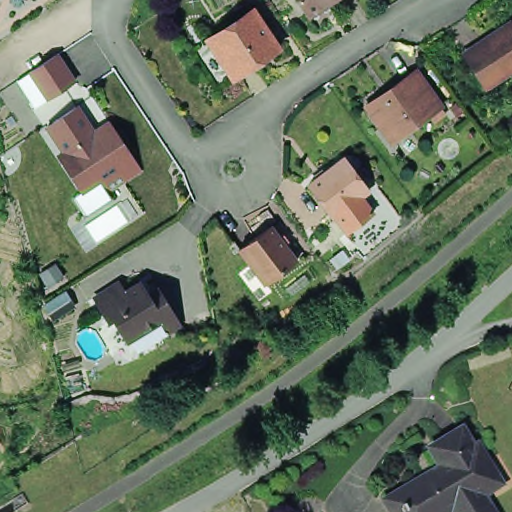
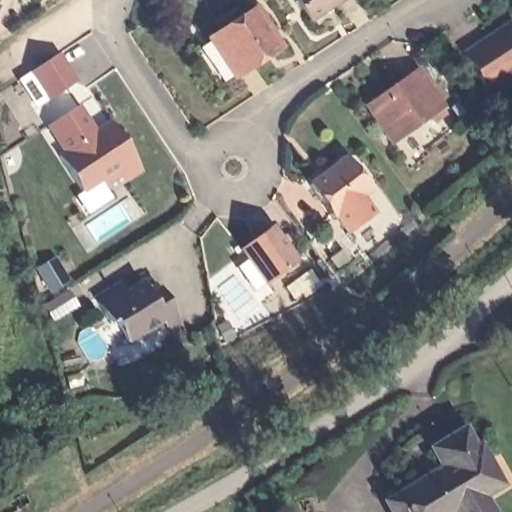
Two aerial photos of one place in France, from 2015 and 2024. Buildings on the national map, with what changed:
unchanged [(309,13),(300,0),(329,0),(309,13)]
unchanged [(279,44),(265,53),(234,74),(208,35),(253,6),(276,39),(279,44)]
unchanged [(487,95),(466,64),(482,53),(484,55),(492,50),(487,44),(512,28),(512,79),(487,95)]
unchanged [(57,56),(69,73),(75,83),(48,101),(42,91),(30,74),(57,56)]
unchanged [(435,127),(431,121),(392,148),(369,117),(366,113),(391,95),(405,85),(407,87),(419,78),(443,111),(441,113),(446,120),(435,127)]
unchanged [(77,103),(95,129),(96,128),(109,120),(114,128),(121,139),(122,137),(141,165),(109,186),(101,175),(82,188),(59,152),(66,148),(49,122),(77,103)]
unchanged [(337,213),(314,181),(347,157),(371,189),(337,213)]
unchanged [(277,227),(303,262),(271,286),(245,251),(277,227)]
unchanged [(160,343),(151,329),(128,343),(114,320),(109,323),(98,304),(95,299),(120,283),(122,289),(126,294),(141,284),(149,296),(159,290),(174,315),(182,328),(160,343)]
unchanged [(449,512),(447,508),(440,512),(397,512),(387,496),(432,468),(421,450),(462,425),(474,444),(479,440),(501,476),(482,487),(496,512),(449,512)]

